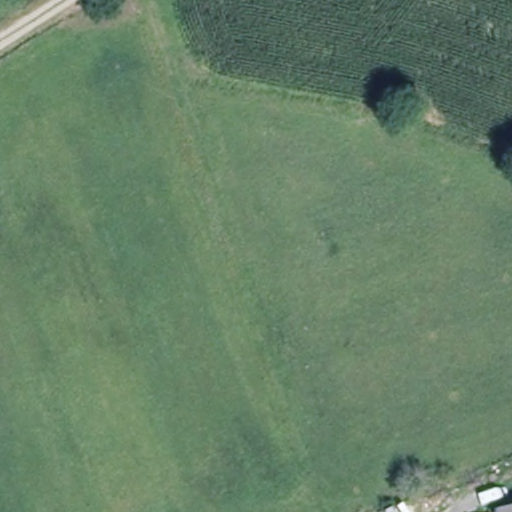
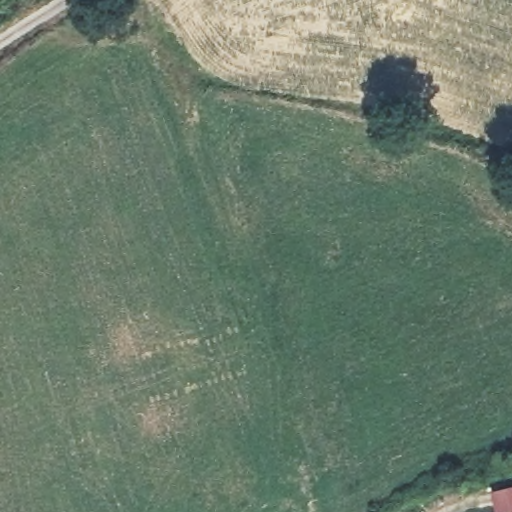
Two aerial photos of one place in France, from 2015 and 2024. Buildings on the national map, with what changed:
unchanged [(512,512),(505,512),(512,508),(512,512)]

